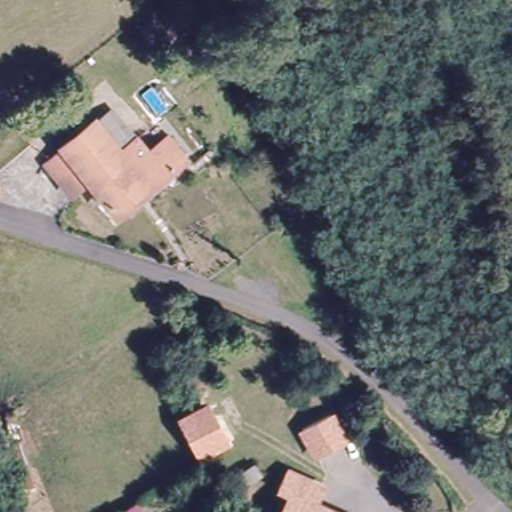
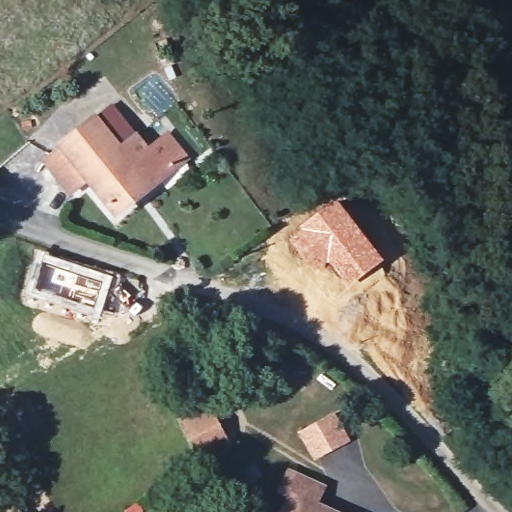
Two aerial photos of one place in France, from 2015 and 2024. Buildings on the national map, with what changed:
unchanged [(55,145),(84,121),(102,106),(125,135),(127,137),(140,153),(159,140),(171,131),(183,148),(172,157),(137,183),(141,187),(126,200),(111,213),(82,179),(66,193),(40,161),(56,147),(55,145)]
new [(334,197),(384,260),(347,288),(327,264),(315,273),(287,239),(334,197)]
unchanged [(209,403),(232,448),(199,462),(176,419),(209,403)]
unchanged [(331,418),(344,443),(317,457),(304,432),(331,418)]
unchanged [(281,491),(289,473),(321,488),(313,505),(329,512),(284,512),(291,496),(281,491)]
unchanged [(165,512),(149,512),(160,505),(165,512)]

